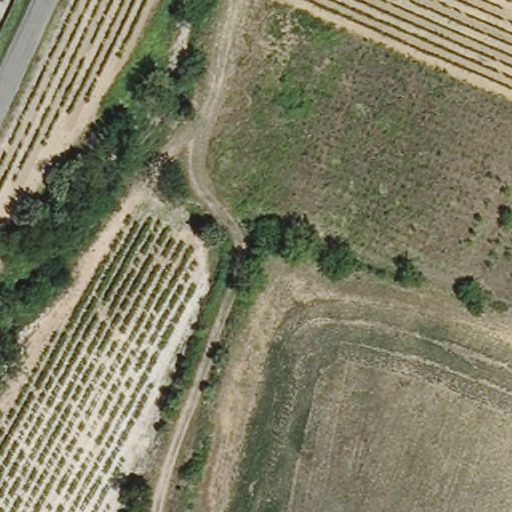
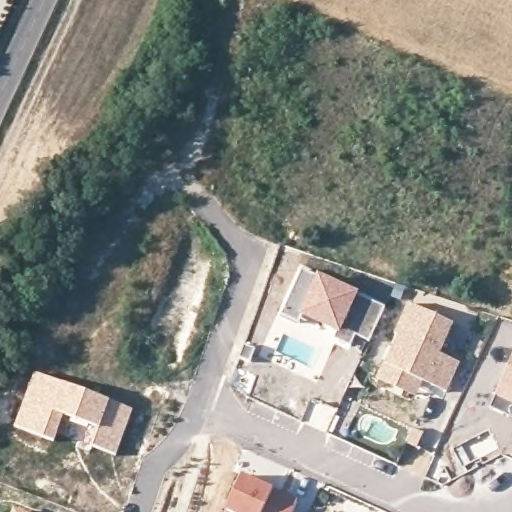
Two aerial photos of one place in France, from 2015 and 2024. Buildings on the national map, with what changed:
new [(308,268),(390,305),(371,347),(358,340),(353,351),(337,345),(341,335),(307,320),(303,329),(284,321),(288,311),(308,268)]
new [(399,340),(395,338),(410,306),(454,325),(440,356),(460,365),(447,394),(423,383),(417,397),(380,381),(387,367),(399,340)]
new [(512,357),(512,423),(487,412),(494,398),(512,357)]
new [(117,455),(93,445),(98,426),(62,412),(54,441),(17,427),(36,373),(64,385),(108,401),(132,411),(117,455)]
new [(301,504),(297,512),(229,512),(244,478),(301,504)]
new [(21,512),(14,512),(15,510),(21,512)]

